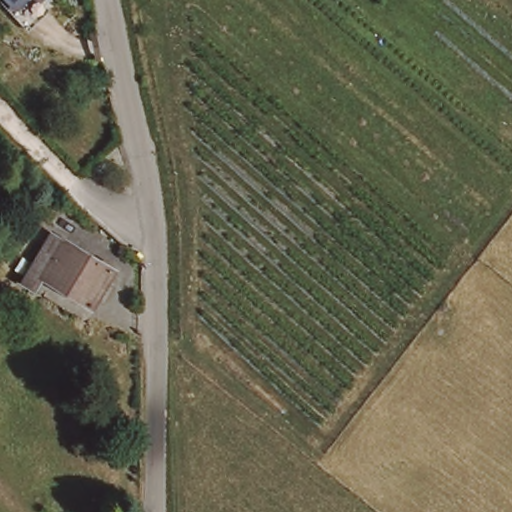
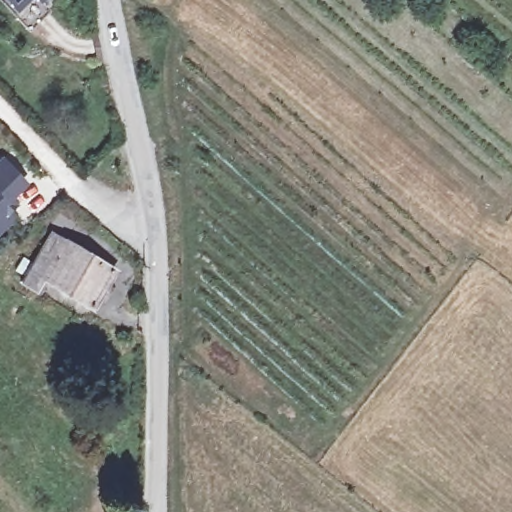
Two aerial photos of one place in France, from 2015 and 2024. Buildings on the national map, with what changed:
unchanged [(15,8),(8,0),(24,0),(15,8)]
new [(3,163),(25,186),(9,200),(13,205),(6,212),(14,220),(0,234),(0,166),(3,163)]
unchanged [(113,265),(88,304),(52,280),(44,293),(27,281),(58,229),(113,265)]

